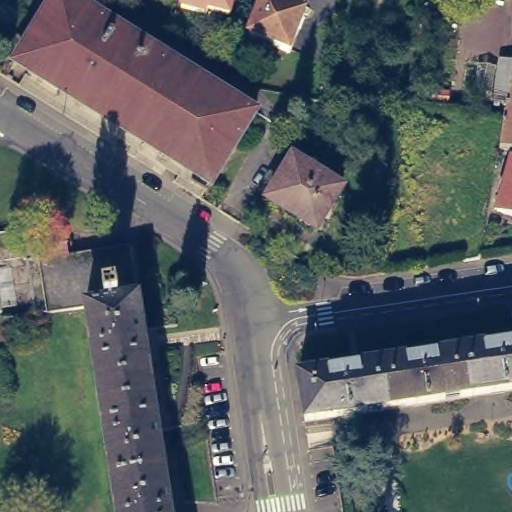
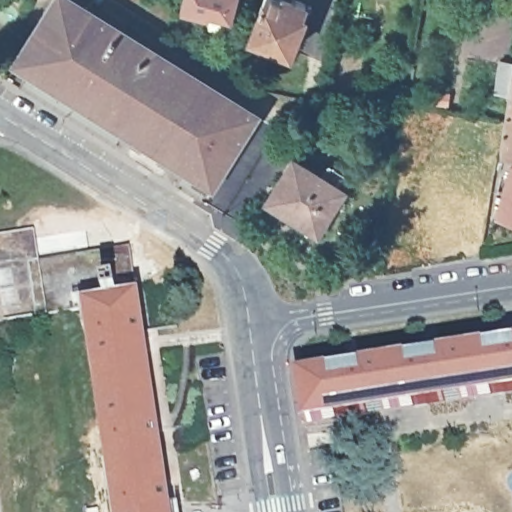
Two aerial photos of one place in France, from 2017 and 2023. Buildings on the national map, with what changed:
unchanged [(11,57),(47,0),(77,0),(250,108),(207,179),(11,57)]
unchanged [(205,10),(205,14),(180,9),(182,0),(224,0),(220,14),(205,10)]
unchanged [(303,14),(306,14),(295,54),(252,41),(264,0),(300,0),(306,2),(303,14)]
unchanged [(495,93),(499,67),(512,69),(512,154),(500,151),(503,123),(508,95),(495,93)]
unchanged [(312,229),(263,200),(288,159),(337,189),(312,229)]
unchanged [(497,212),(512,162),(512,216),(497,212)]
unchanged [(138,299),(86,308),(5,319),(0,286),(0,266),(130,247),(138,299)]
unchanged [(86,308),(138,299),(151,388),(165,470),(170,512),(117,512),(86,308)]
unchanged [(512,346),(512,391),(305,422),(299,378),(512,346)]

